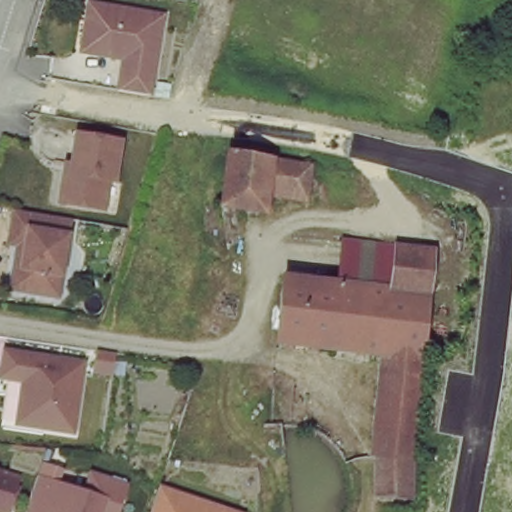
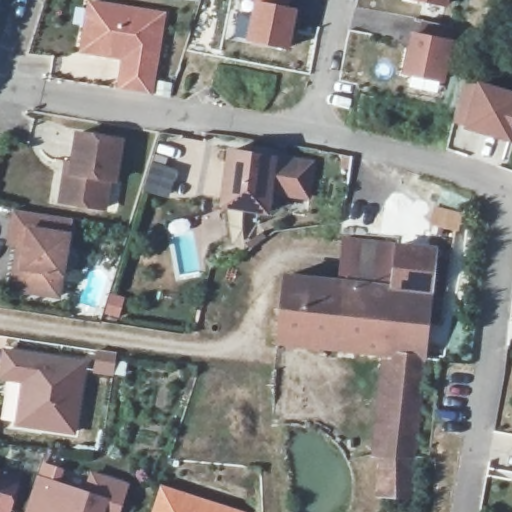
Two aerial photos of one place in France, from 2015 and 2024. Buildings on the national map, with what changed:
unchanged [(117,49),(105,47),(74,42),(76,31),(81,0),(119,0),(157,7),(143,86),(111,81),(117,49)]
new [(284,45),(247,37),(254,0),(284,0),(283,4),(292,6),(284,45)]
new [(448,7),(411,0),(449,0),(448,7)]
new [(421,18),(450,24),(440,78),(402,70),(410,31),(418,33),(421,18)]
new [(465,125),(449,121),(455,102),(462,78),(477,83),(512,93),(512,139),(465,125)]
unchanged [(59,180),(62,163),(63,154),(69,155),(74,125),(118,132),(111,172),(105,171),(101,200),(62,194),(57,193),(59,180)]
unchanged [(269,195),(274,196),(272,209),(264,207),(263,211),(220,203),(228,150),(270,157),(266,190),(271,191),(269,195)]
unchanged [(266,190),(270,157),(310,163),(309,172),(305,197),(271,191),(266,190)]
unchanged [(16,240),(6,238),(11,205),(68,213),(57,291),(17,285),(10,284),(16,240)]
unchanged [(354,239),(395,243),(390,286),(349,281),(354,239)]
unchanged [(434,248),(430,299),(412,456),(411,461),(411,495),(377,493),(377,455),(373,454),(379,394),(387,351),(277,340),(283,274),(349,281),(390,286),(395,243),(434,248)]
unchanged [(113,346),(110,367),(93,364),(96,343),(113,346)]
unchanged [(66,426),(10,418),(14,392),(21,393),(24,369),(0,365),(0,346),(76,356),(66,426)]
demolished [(288,445),(268,447),(270,426),(275,426),(286,425),(286,428),(288,445)]
unchanged [(95,512),(30,512),(20,509),(19,509),(33,467),(48,472),(81,483),(88,464),(124,475),(117,496),(111,512),(106,512),(96,509),(95,512)]
unchanged [(227,509),(236,512),(152,512),(161,485),(227,509)]

